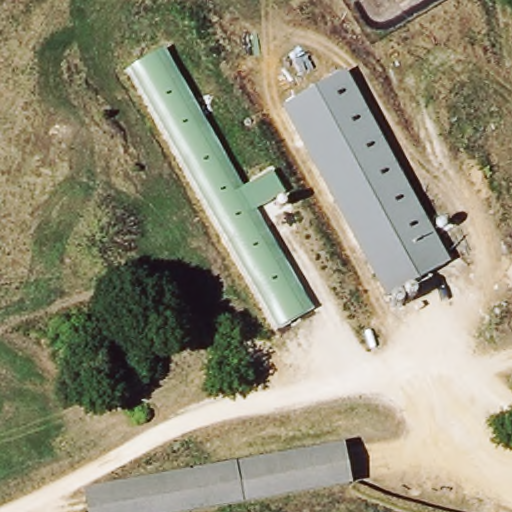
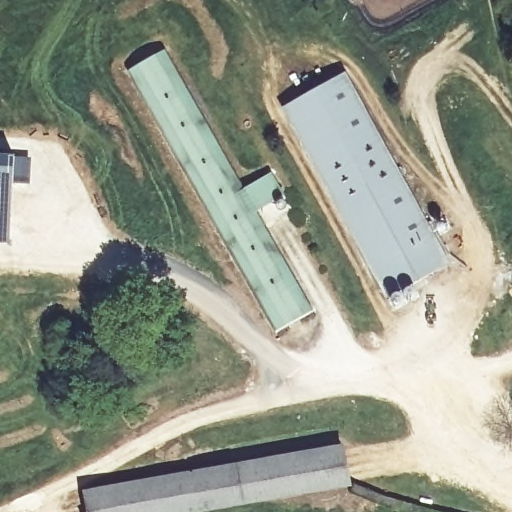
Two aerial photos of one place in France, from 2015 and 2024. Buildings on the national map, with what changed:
unchanged [(131,72),(169,51),(315,315),(279,332),(131,72)]
unchanged [(355,76),(445,260),(447,265),(387,293),(366,251),(297,103),(316,94),(355,76)]
new [(17,215),(0,215),(0,155),(20,156),(17,215)]
new [(15,240),(0,240),(0,215),(17,215),(15,240)]
unchanged [(346,445),(352,487),(215,512),(89,512),(85,491),(346,445)]

